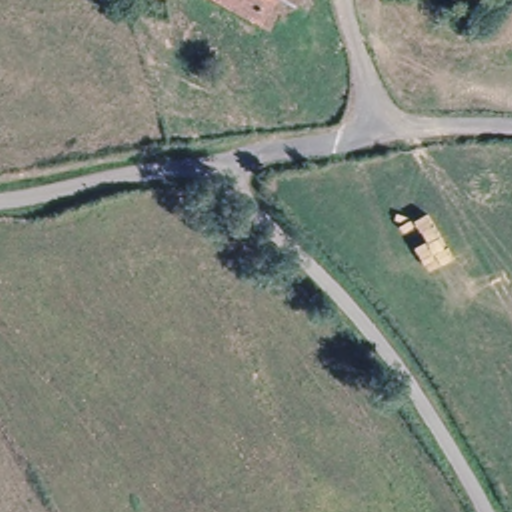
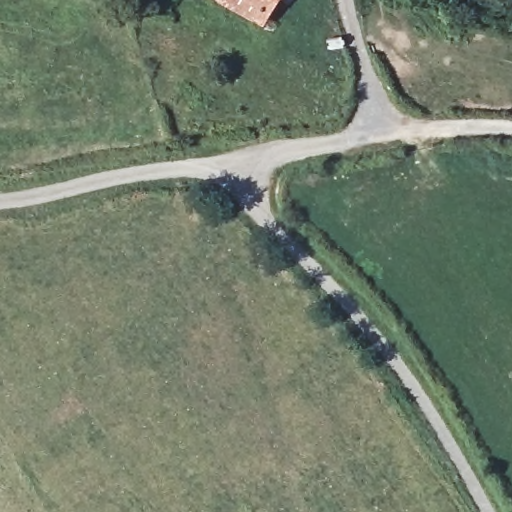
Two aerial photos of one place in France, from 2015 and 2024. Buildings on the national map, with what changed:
unchanged [(214,0),(263,0),(251,21),(214,0)]

